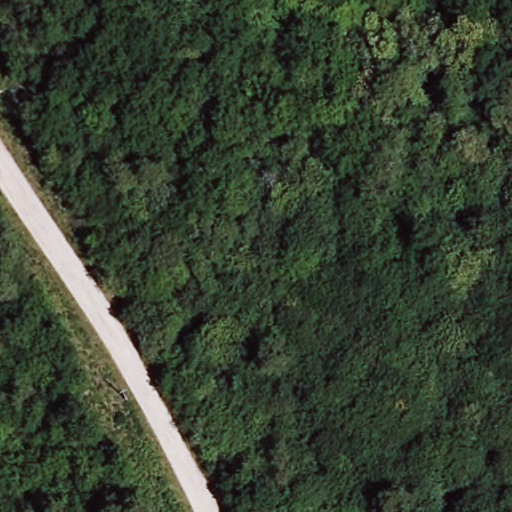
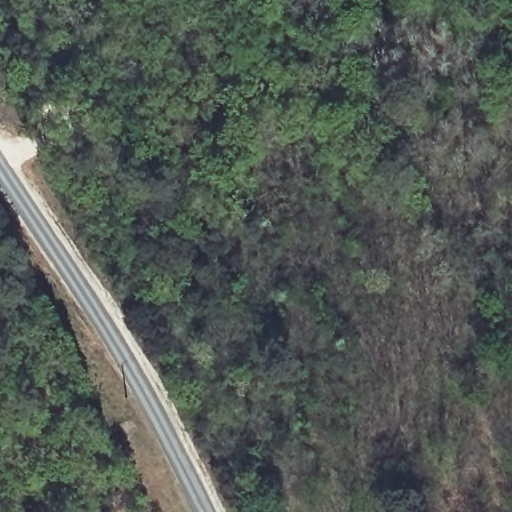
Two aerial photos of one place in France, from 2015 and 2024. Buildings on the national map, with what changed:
[]

